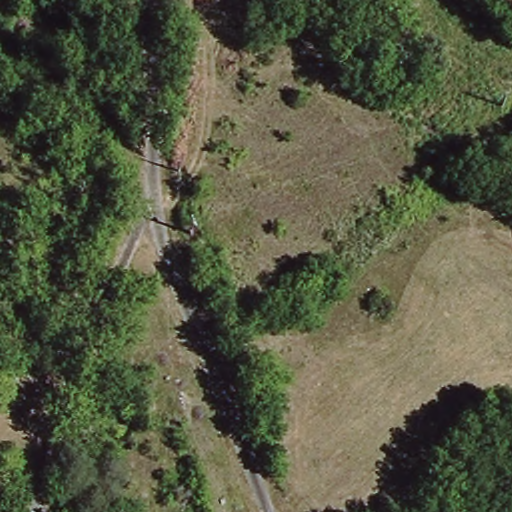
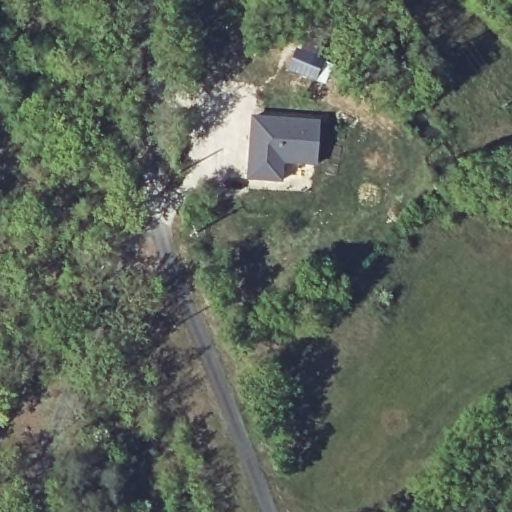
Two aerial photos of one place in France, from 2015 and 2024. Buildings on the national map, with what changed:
new [(315,166),(285,164),(283,184),(247,181),(252,115),(319,121),(315,166)]

